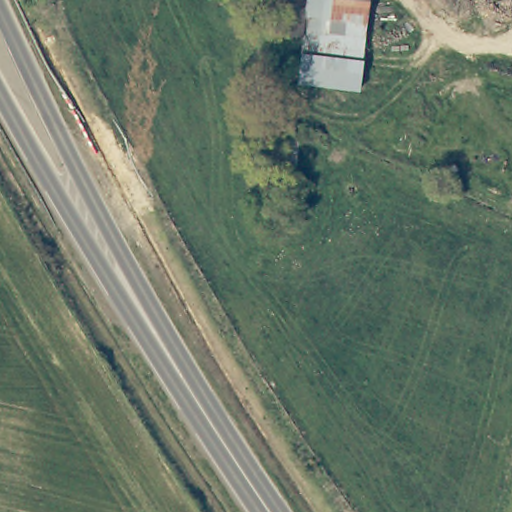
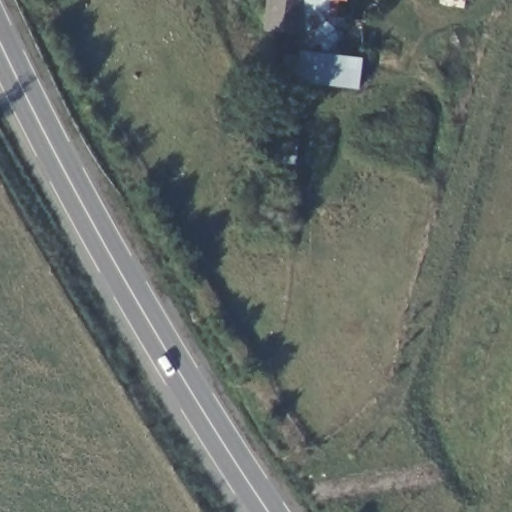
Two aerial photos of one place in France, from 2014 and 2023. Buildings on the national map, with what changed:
unchanged [(302,35),(265,31),(269,0),(306,0),(302,35)]
unchanged [(306,0),(366,0),(361,47),(301,40),(302,35),(306,0)]
unchanged [(361,47),(356,88),(297,82),(301,40),(361,47)]

